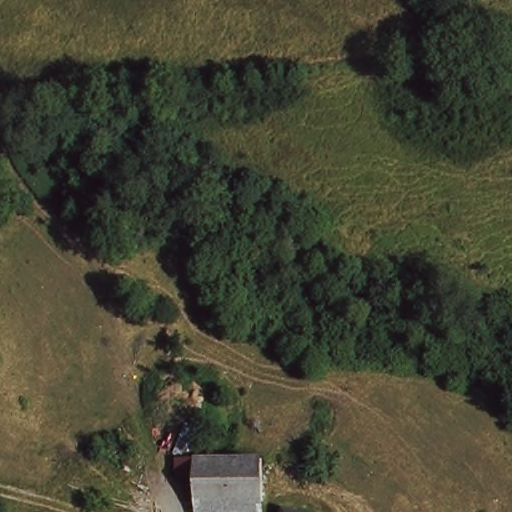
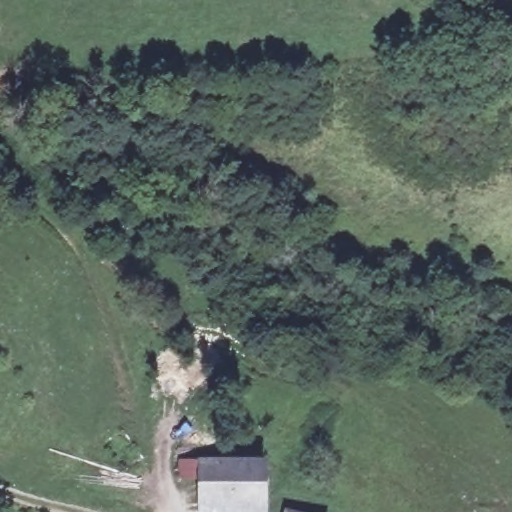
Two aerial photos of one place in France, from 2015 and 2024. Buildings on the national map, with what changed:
unchanged [(201,473),(186,473),(187,457),(202,457),(266,457),(265,497),(201,495),(201,473)]
unchanged [(265,511),(201,512),(201,495),(265,497),(265,511)]
unchanged [(294,507),(311,512),(293,512),(294,507)]

